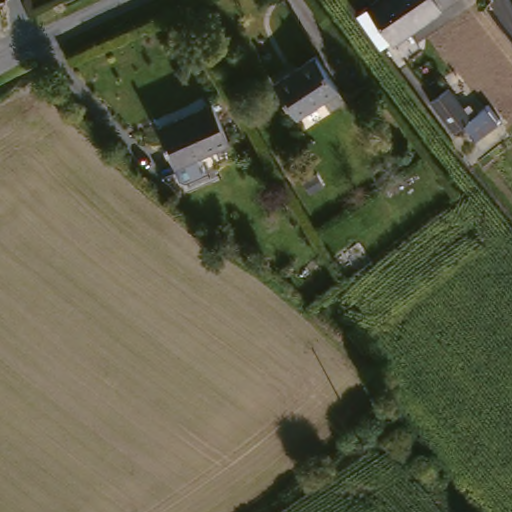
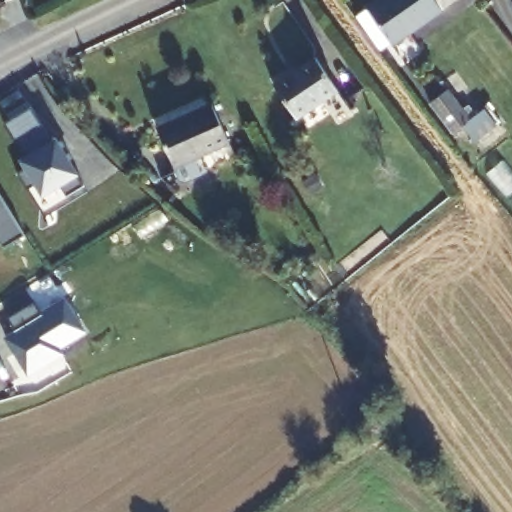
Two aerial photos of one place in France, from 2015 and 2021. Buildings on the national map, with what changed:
unchanged [(361,15),(383,0),(451,0),(453,4),(385,50),(361,15)]
unchanged [(512,0),(512,2),(511,0),(512,0)]
unchanged [(275,85),(315,57),(337,91),(295,120),(275,85)]
unchanged [(467,133),(462,127),(453,134),(429,104),(447,90),(475,126),(467,133)]
unchanged [(156,129),(212,104),(229,143),(174,167),(156,129)]
new [(19,158),(56,135),(79,172),(83,182),(66,193),(62,184),(42,195),(33,180),(27,187),(18,171),(23,165),(19,158)]
new [(24,231),(1,245),(0,244),(0,191),(24,231)]

